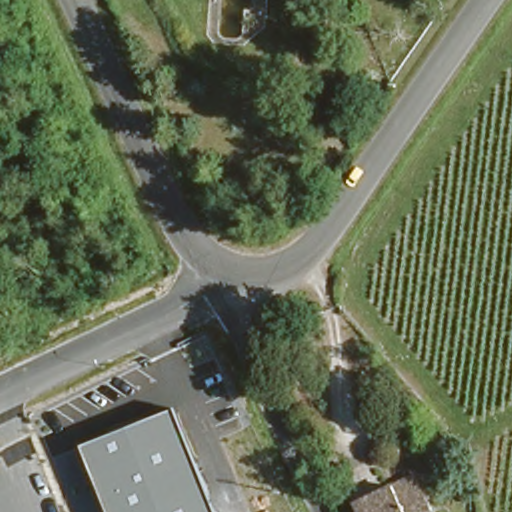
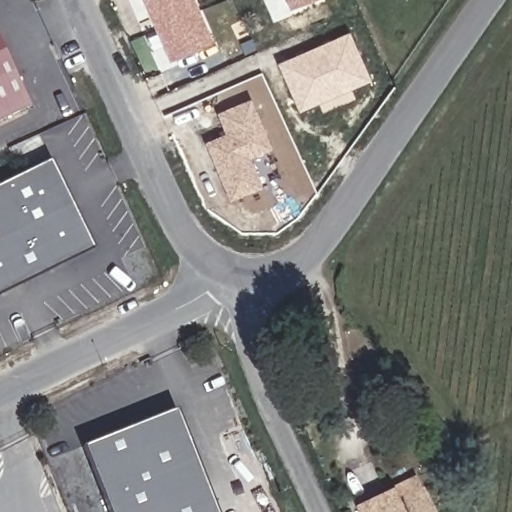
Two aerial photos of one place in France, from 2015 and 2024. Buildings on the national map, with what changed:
new [(168,59),(141,0),(193,0),(212,42),(168,59)]
new [(289,9),(286,0),(311,0),(289,9)]
new [(370,80),(297,112),(275,63),(348,31),(370,80)]
new [(28,107),(0,120),(0,46),(28,107)]
new [(216,112),(250,98),(272,149),(248,158),(260,186),(229,201),(204,141),(224,132),(216,112)]
new [(50,160),(93,249),(0,295),(0,186),(50,160)]
unchanged [(175,408),(218,512),(110,512),(84,446),(175,408)]
unchanged [(414,480),(429,512),(358,512),(355,506),(414,480)]

